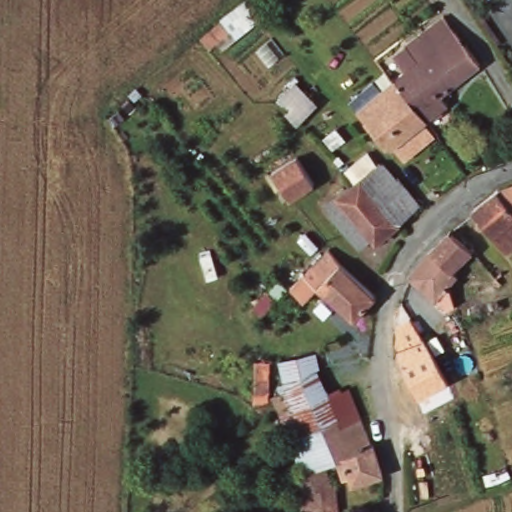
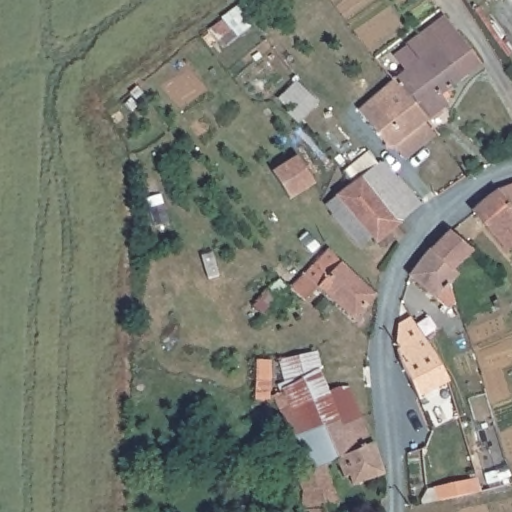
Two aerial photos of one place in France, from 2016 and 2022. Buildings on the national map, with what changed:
unchanged [(446,15),(486,61),(475,71),(450,40),(410,73),(395,56),(446,15)]
unchanged [(410,73),(450,40),(475,71),(451,91),(456,99),(436,114),(422,98),(404,77),(410,73)]
unchanged [(404,77),(422,98),(436,114),(403,141),(394,140),(369,106),(404,77)]
unchanged [(317,100),(297,122),(292,117),(286,110),(306,89),(317,100)]
unchanged [(300,160),(316,189),(312,190),(292,202),(276,175),(300,160)]
unchanged [(384,163),(420,205),(398,224),(362,181),(384,163)]
unchanged [(353,189),(362,181),(398,224),(376,243),(372,239),(358,250),(348,238),(341,230),(328,209),(353,189)]
unchanged [(512,188),(512,209),(497,192),(512,188)]
unchanged [(497,192),(512,209),(512,250),(510,252),(471,210),(497,192)]
unchanged [(455,232),(476,249),(451,284),(458,307),(449,311),(437,293),(415,276),(427,256),(455,232)]
unchanged [(375,293),(352,320),(325,290),(305,310),(289,295),(308,278),(305,274),(330,251),(375,293)]
unchanged [(400,341),(414,333),(416,339),(427,333),(452,381),(422,395),(399,347),(400,341)]
unchanged [(261,358),(277,359),(278,393),(292,387),(291,381),(285,363),(312,350),(320,367),(334,395),(351,386),(364,413),(377,441),(376,441),(353,451),(342,425),(340,421),(299,440),(296,441),(289,422),(256,434),(252,435),(248,418),(260,413),(257,402),(261,401),(261,358)]
unchanged [(340,421),(342,425),(353,451),(376,441),(377,441),(383,472),(357,483),(354,475),(346,477),(341,460),(330,463),(332,481),(337,480),(342,507),(332,510),(332,512),(304,512),(303,500),(296,475),(305,470),(296,441),(299,440),(340,421)]

